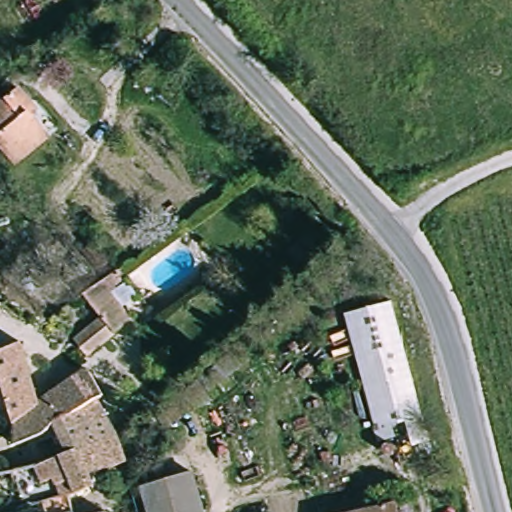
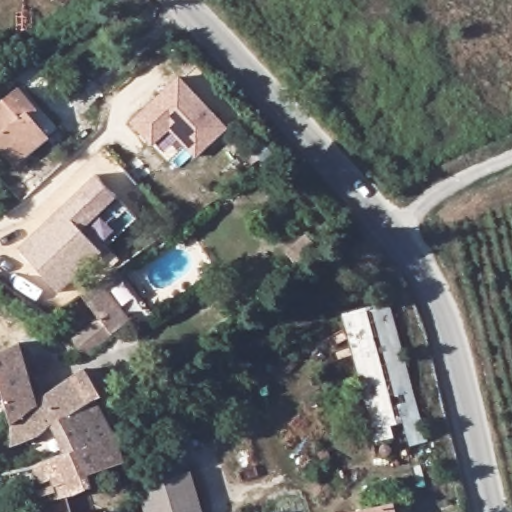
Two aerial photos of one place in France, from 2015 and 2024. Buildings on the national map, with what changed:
new [(168,87),(181,75),(229,125),(198,155),(171,126),(154,143),(133,121),(163,92),(168,87)]
unchanged [(36,105),(28,110),(46,139),(14,159),(0,136),(0,106),(26,89),(36,105)]
new [(115,194),(80,227),(101,249),(59,290),(18,247),(94,172),(115,194)]
unchanged [(100,313),(86,285),(106,275),(129,324),(76,351),(68,330),(100,313)]
unchanged [(406,411),(389,413),(392,425),(375,428),(343,300),(389,290),(427,430),(411,434),(406,411)]
unchanged [(56,426),(15,442),(9,422),(0,396),(0,346),(12,341),(34,401),(83,372),(98,398),(91,405),(104,433),(106,436),(66,450),(56,426)]
unchanged [(91,501),(88,489),(63,496),(35,505),(18,510),(9,480),(8,480),(4,471),(66,450),(106,436),(118,464),(101,469),(109,496),(91,501)]
unchanged [(203,512),(145,512),(138,492),(186,470),(203,512)]
unchanged [(35,505),(63,496),(67,512),(37,512),(35,505)]
unchanged [(399,512),(343,512),(397,502),(399,512)]

